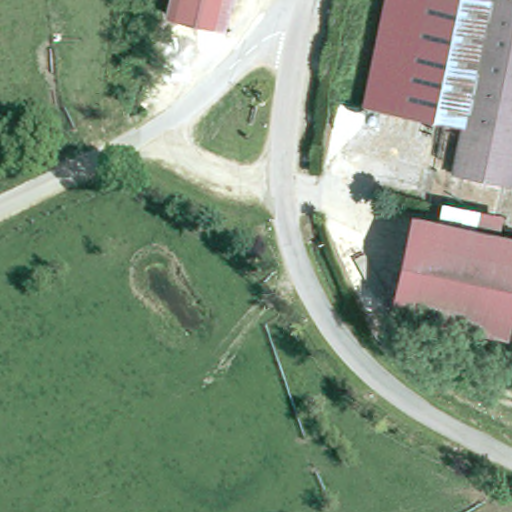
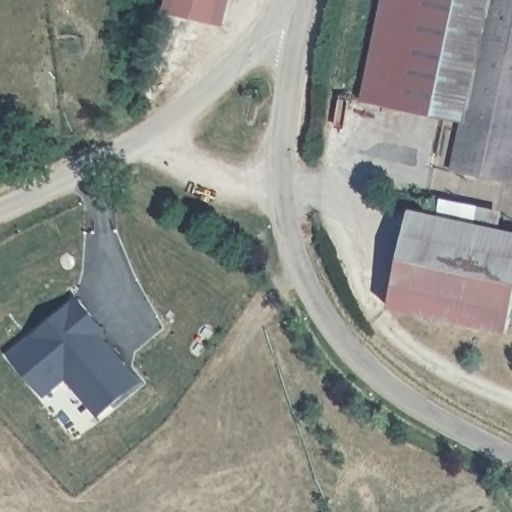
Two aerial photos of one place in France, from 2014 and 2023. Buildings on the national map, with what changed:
unchanged [(163,0),(221,0),(210,42),(156,28),(163,0)]
unchanged [(363,101),(385,0),(489,0),(463,122),(363,101)]
unchanged [(463,122),(489,0),(512,0),(512,182),(453,170),(463,122)]
unchanged [(391,301),(410,207),(512,229),(512,314),(510,326),(391,301)]
new [(82,300),(107,331),(96,342),(101,349),(107,344),(127,367),(124,371),(138,387),(112,407),(96,389),(85,399),(67,379),(45,398),(12,356),(82,300)]

